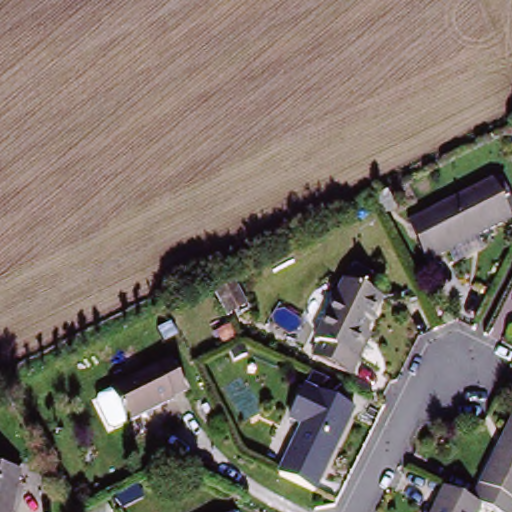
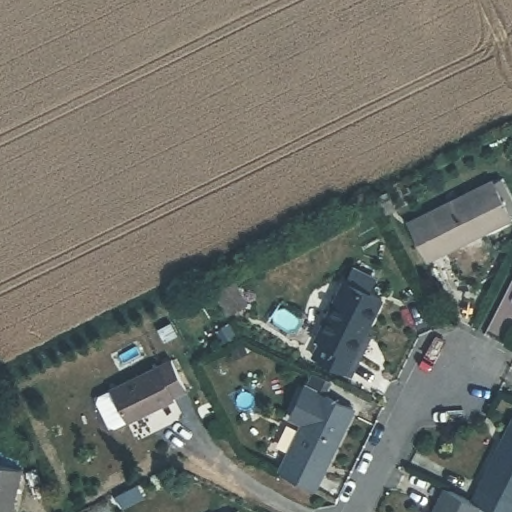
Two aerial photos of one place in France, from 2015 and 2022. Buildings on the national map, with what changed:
unchanged [(448,245),(433,252),(426,255),(407,217),(415,214),(492,175),(493,178),(501,174),(512,196),(512,208),(509,209),(511,215),(478,230),(482,240),(453,255),(448,245)]
unchanged [(312,355),(320,340),(315,338),(345,277),(382,296),(365,332),(370,335),(358,360),(350,374),(312,355)]
unchanged [(512,278),(512,281),(511,280),(512,278)]
unchanged [(236,280),(246,303),(228,312),(217,290),(236,280)]
unchanged [(171,354),(186,383),(172,390),(174,392),(126,415),(110,383),(171,354)]
unchanged [(306,423),(294,417),(309,385),(312,384),(318,371),(335,380),(328,393),(357,408),(318,490),(283,472),(306,423)]
unchanged [(512,512),(485,512),(480,510),(470,505),(495,457),(512,422),(512,512)]
unchanged [(20,468),(10,512),(0,512),(0,464),(20,468)]
unchanged [(470,505),(480,510),(479,512),(433,512),(443,492),(470,505)]
unchanged [(237,511),(237,512),(236,512),(237,511)]

